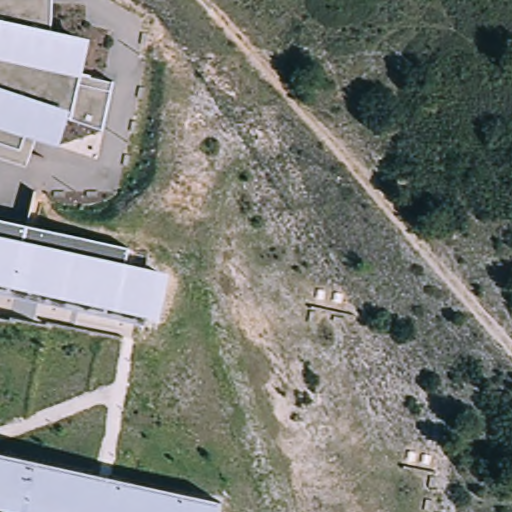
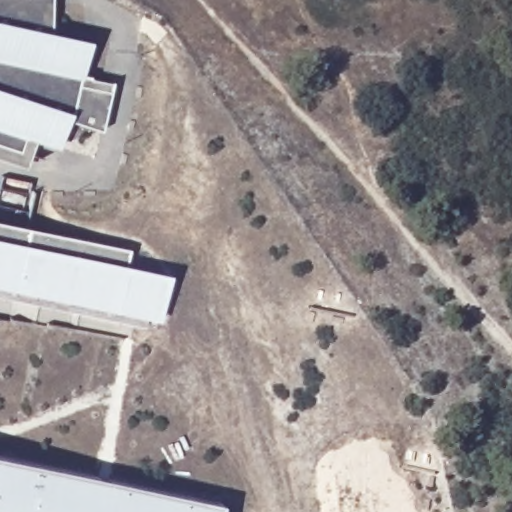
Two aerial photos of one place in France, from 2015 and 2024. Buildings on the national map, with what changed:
unchanged [(88,35),(78,64),(112,74),(98,121),(60,110),(51,137),(23,129),(19,145),(0,139),(0,0),(51,0),(53,24),(88,35)]
unchanged [(125,267),(167,276),(158,317),(146,315),(145,325),(0,293),(0,219),(130,247),(125,267)]
unchanged [(218,512),(40,512),(0,503),(0,453),(220,501),(218,512)]

